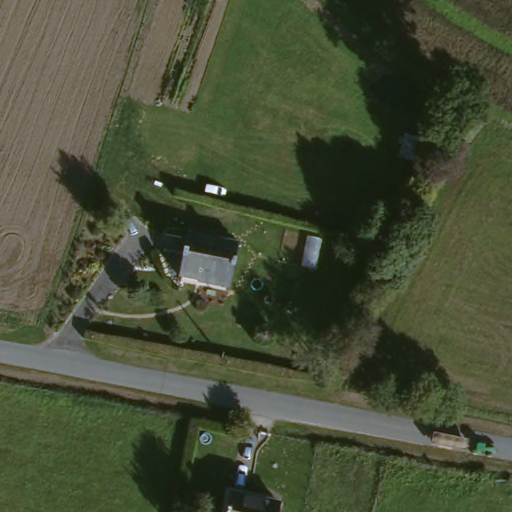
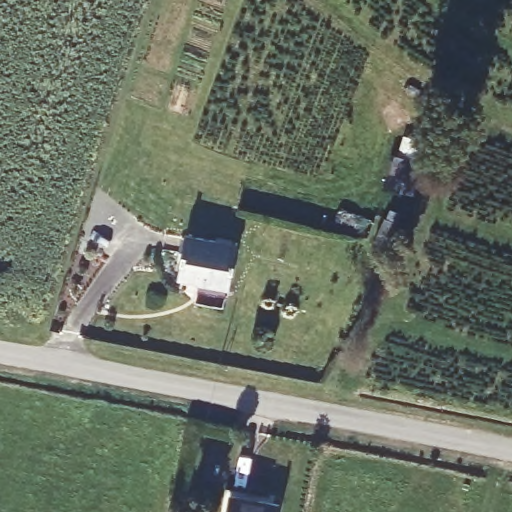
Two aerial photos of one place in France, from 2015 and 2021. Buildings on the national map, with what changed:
unchanged [(236,249),(228,287),(180,278),(188,240),(236,249)]
unchanged [(278,505),(277,512),(226,512),(229,495),(278,505)]

